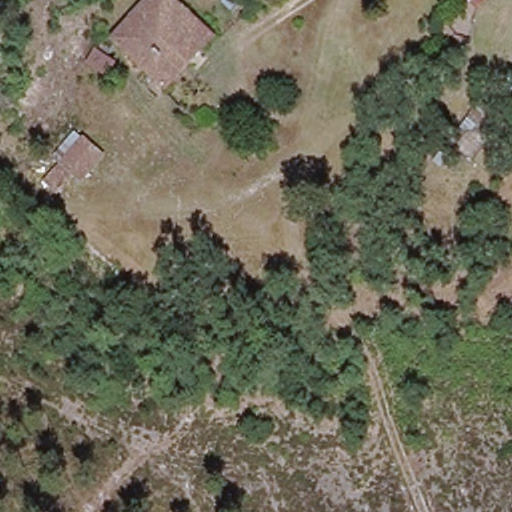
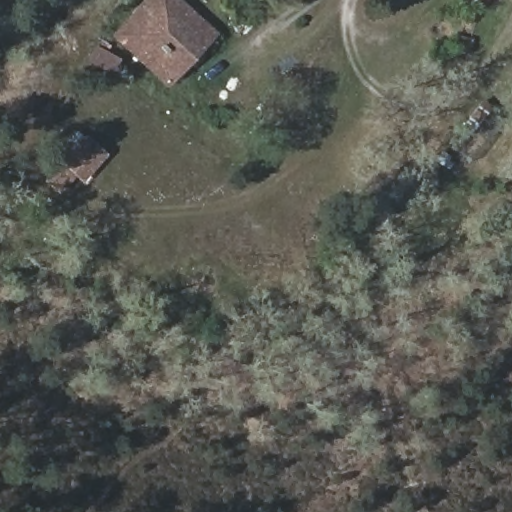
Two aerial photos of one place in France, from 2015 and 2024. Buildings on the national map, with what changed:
unchanged [(115,37),(146,0),(170,0),(213,34),(172,83),(115,37)]
unchanged [(481,9),(470,0),(490,0),(481,9)]
unchanged [(87,182),(76,173),(61,192),(38,177),(75,124),(111,152),(87,182)]

